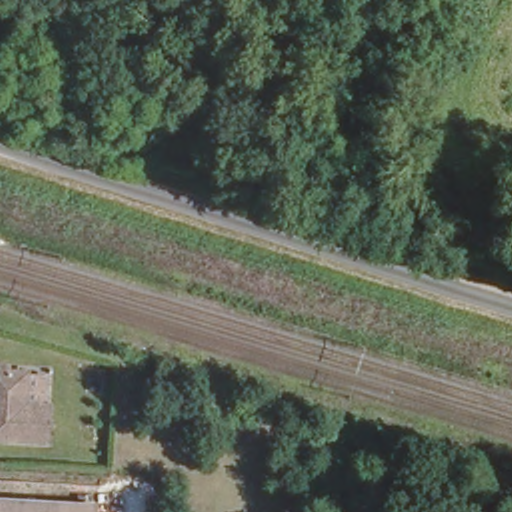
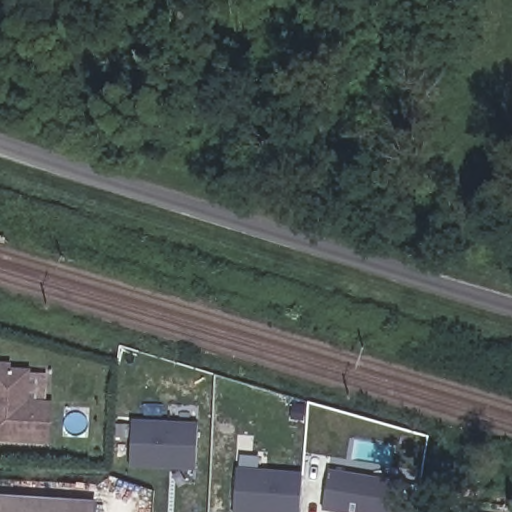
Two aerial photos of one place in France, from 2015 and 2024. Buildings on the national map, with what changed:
unchanged [(10,379),(25,380),(50,382),(48,412),(45,448),(0,443),(0,373),(9,374),(10,379)]
new [(131,470),(132,422),(196,424),(196,471),(131,470)]
new [(237,470),(301,475),(300,512),(235,512),(237,470)]
new [(405,483),(400,512),(329,512),(323,511),(330,470),(405,483)]
unchanged [(95,512),(0,512),(0,492),(96,499),(95,512)]

